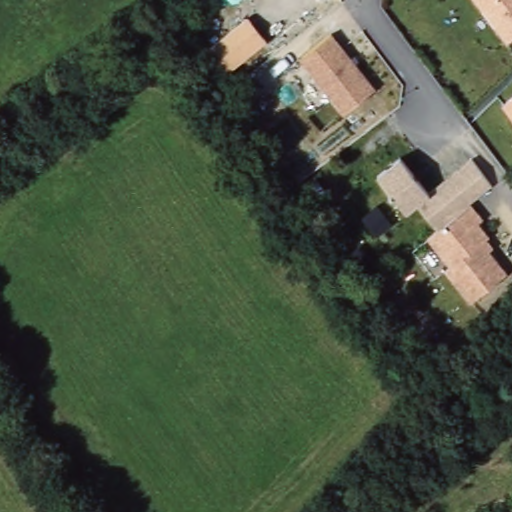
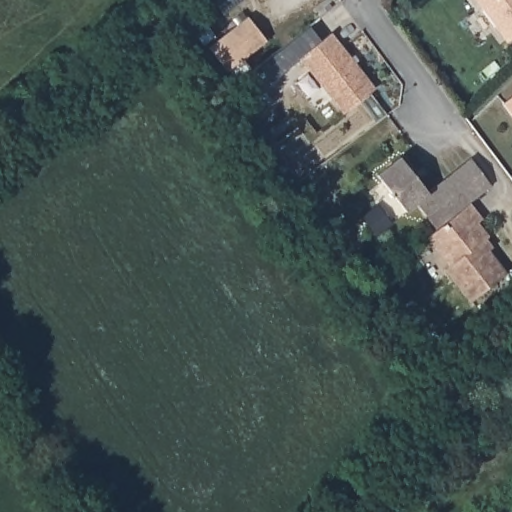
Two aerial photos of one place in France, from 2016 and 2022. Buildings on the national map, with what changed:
unchanged [(475,0),(512,0),(512,39),(507,42),(475,0)]
unchanged [(268,38),(222,76),(204,51),(247,16),(268,38)]
unchanged [(343,110),(301,57),(332,33),(375,89),(343,110)]
unchanged [(512,95),(512,113),(503,101),(512,95)]
unchanged [(473,302),(444,265),(448,263),(427,234),(434,228),(417,205),(405,213),(375,175),(400,157),(427,191),(473,158),(492,185),(470,202),(483,220),(477,225),(495,250),(492,254),(505,273),(473,302)]

